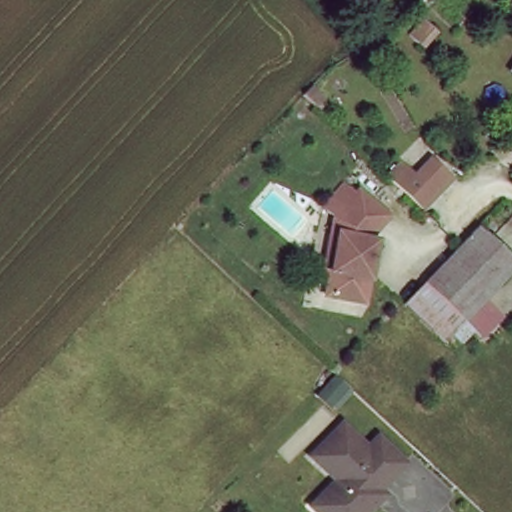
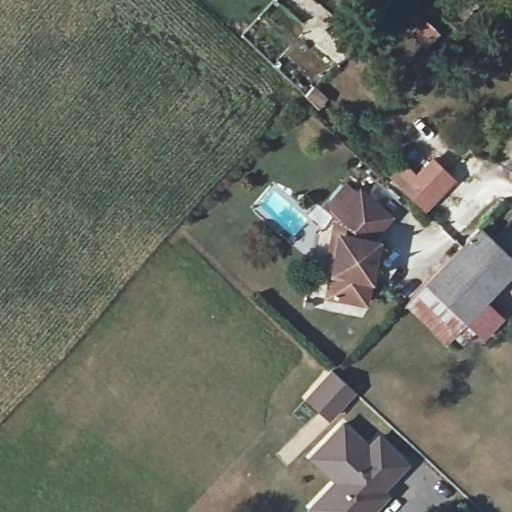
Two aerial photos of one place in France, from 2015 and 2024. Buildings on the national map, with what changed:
unchanged [(318,93),(310,101),(299,90),(306,82),(318,93)]
unchanged [(417,175),(432,157),(453,176),(425,208),(391,176),(404,163),(417,175)]
unchanged [(372,297),(334,290),(338,266),(332,265),(339,228),(342,214),(366,185),(395,210),(378,231),(377,234),(383,235),(378,261),(376,272),(372,297)]
unchanged [(460,253),(464,250),(480,233),(512,264),(512,276),(498,291),(460,253)]
unchanged [(446,344),(408,308),(460,253),(498,291),(446,344)]
new [(329,421),(304,398),(331,369),(356,392),(329,421)]
unchanged [(369,512),(362,512),(359,509),(356,512),(330,512),(318,500),(343,474),(318,450),(350,418),(375,442),(385,431),(412,457),(387,484),(392,489),(384,497),(369,512)]

